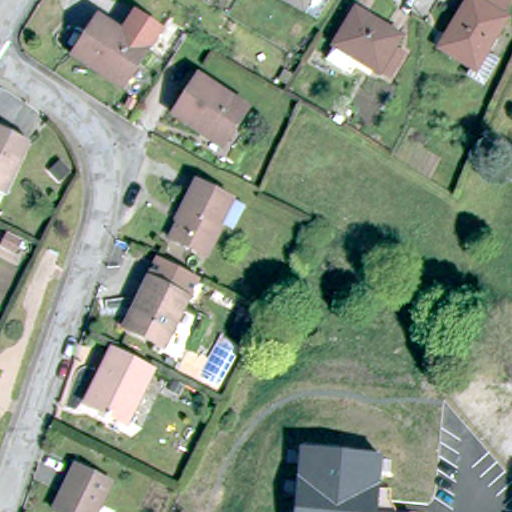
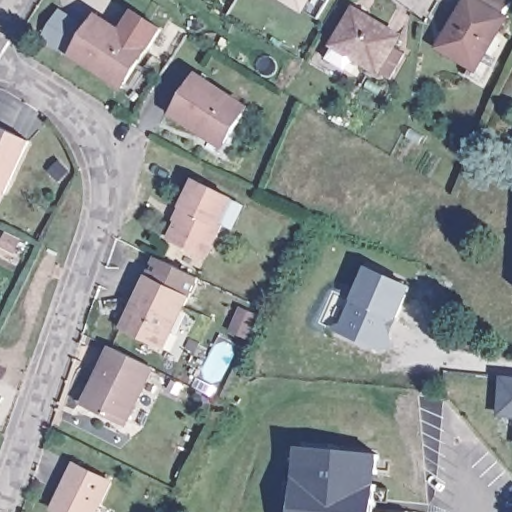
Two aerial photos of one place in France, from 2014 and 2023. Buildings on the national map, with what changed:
unchanged [(301,0),(300,2),(297,0),(301,0)]
unchanged [(496,60),(482,84),(468,76),(475,66),(439,45),(465,0),(508,0),(499,14),(504,16),(483,52),(496,60)]
unchanged [(324,51),(333,38),(355,4),(398,30),(391,41),(403,49),(389,73),(376,65),(351,50),(343,63),(324,51)]
unchanged [(125,82),(104,68),(101,72),(72,52),(97,15),(121,31),(134,10),(161,28),(148,48),(125,82)]
unchanged [(248,111),(226,146),(204,133),(202,137),(172,117),(198,78),(248,111)]
unchanged [(26,136),(2,190),(0,189),(0,125),(26,136)]
unchanged [(184,203),(181,201),(194,176),(231,193),(218,219),(221,221),(206,253),(168,234),(184,203)]
new [(403,347),(385,355),(344,341),(367,272),(414,286),(398,331),(403,347)]
unchanged [(132,303),(146,275),(187,295),(162,341),(130,325),(123,322),(132,303)]
unchanged [(100,369),(112,343),(154,364),(127,421),(90,403),(85,400),(100,369)]
new [(512,380),(512,419),(502,418),(506,379),(512,380)]
unchanged [(301,442),(306,442),(300,512),(296,512),(301,442)]
unchanged [(306,442),(374,447),(380,448),(375,502),(416,504),(415,512),(300,512),(306,442)]
unchanged [(72,461),(109,478),(93,512),(63,512),(50,506),(72,461)]

